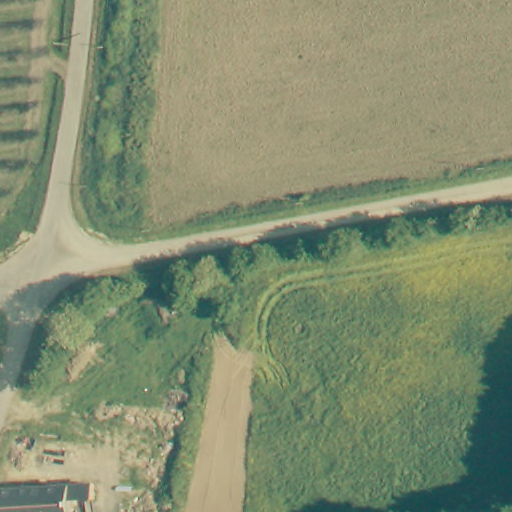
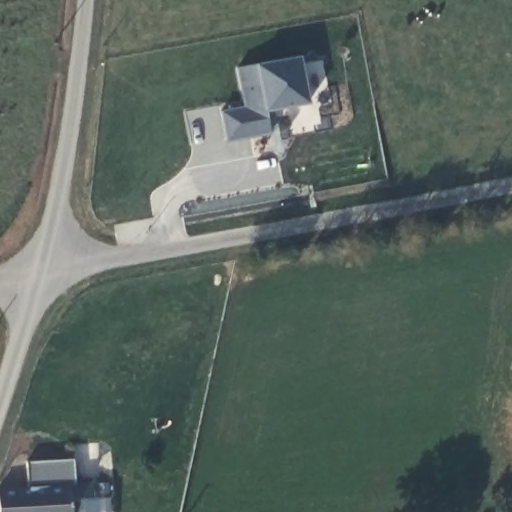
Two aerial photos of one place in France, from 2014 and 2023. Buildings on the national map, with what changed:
new [(310,104),(267,112),(268,134),(226,141),(220,111),(242,106),(236,69),(255,64),(298,57),(310,104)]
new [(26,464),(71,460),(75,487),(31,491),(26,464)]
unchanged [(108,485),(110,512),(65,512),(65,502),(87,500),(87,486),(108,485)]
unchanged [(87,500),(65,502),(65,512),(0,512),(0,494),(87,486),(87,500)]

